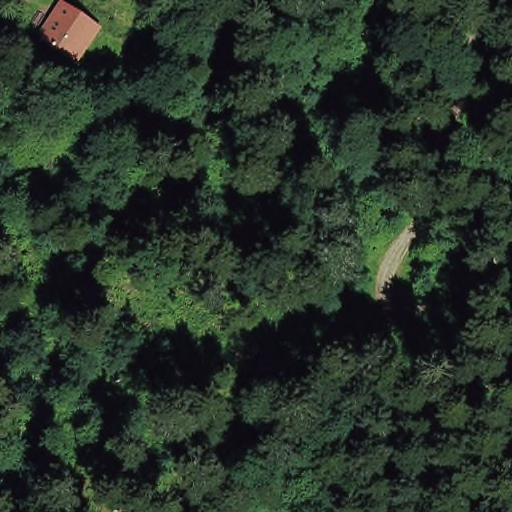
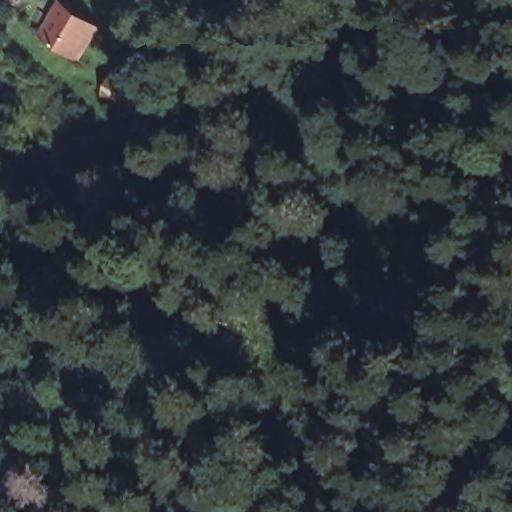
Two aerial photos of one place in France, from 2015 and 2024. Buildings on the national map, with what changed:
unchanged [(62,6),(101,32),(76,69),(37,42),(62,6)]
unchanged [(110,80),(136,94),(126,114),(100,99),(110,80)]

